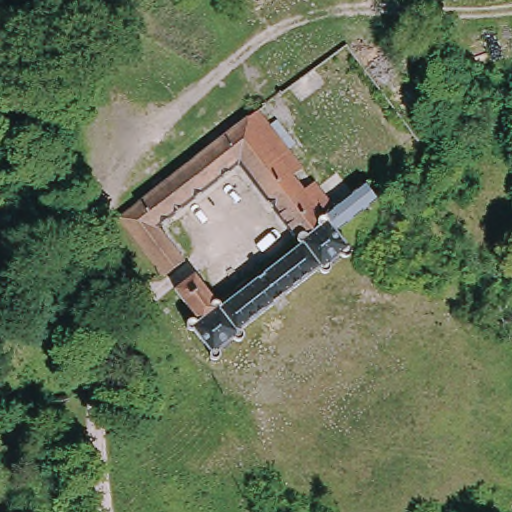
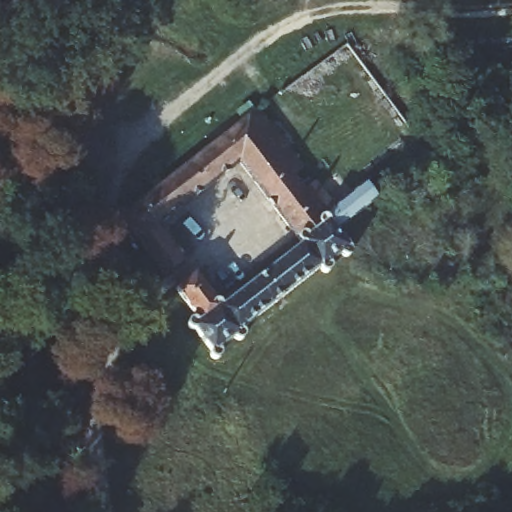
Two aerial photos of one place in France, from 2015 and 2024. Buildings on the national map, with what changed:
unchanged [(179,163),(240,115),(247,110),(257,103),(312,170),(303,177),(311,188),(351,160),(365,175),(374,186),(334,220),(325,211),(299,232),(292,224),(237,155),(162,220),(184,248),(163,266),(117,210),(147,188),(179,163)]
unchanged [(292,224),(299,232),(325,211),(334,220),(349,242),(350,242),(347,247),(342,250),(337,246),(328,253),(330,257),(328,261),(324,264),(319,259),(284,288),(287,292),(281,300),(275,302),(270,300),(244,321),(245,326),(242,330),(237,330),(235,326),(225,335),(222,340),(220,343),(215,342),(212,337),(215,331),(203,318),(197,321),(194,322),(190,317),(192,313),(198,310),(176,281),(195,263),(213,287),(292,224)]

